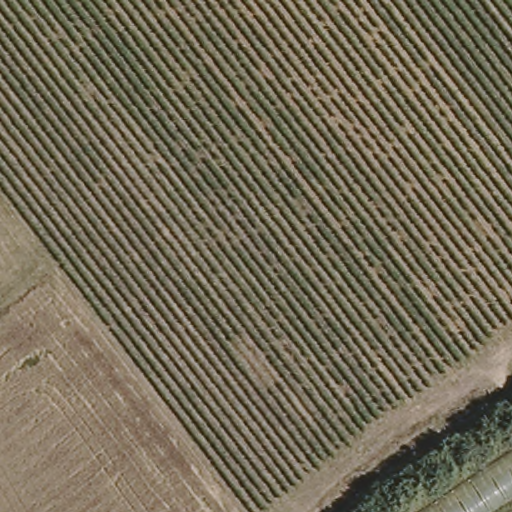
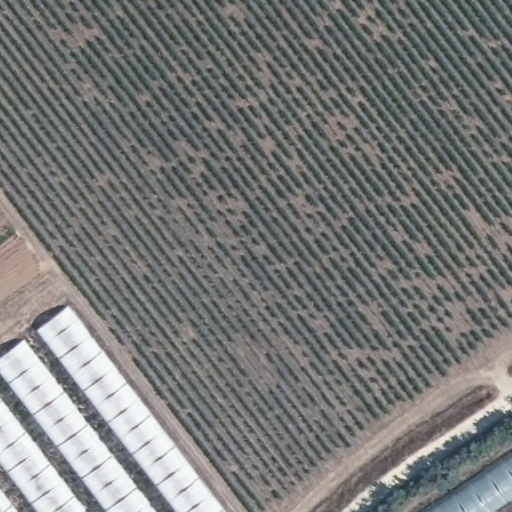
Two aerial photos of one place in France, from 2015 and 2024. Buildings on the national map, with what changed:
new [(67,305),(225,512),(0,512),(0,357),(67,305)]
unchanged [(512,454),(512,512),(421,512),(512,454)]

